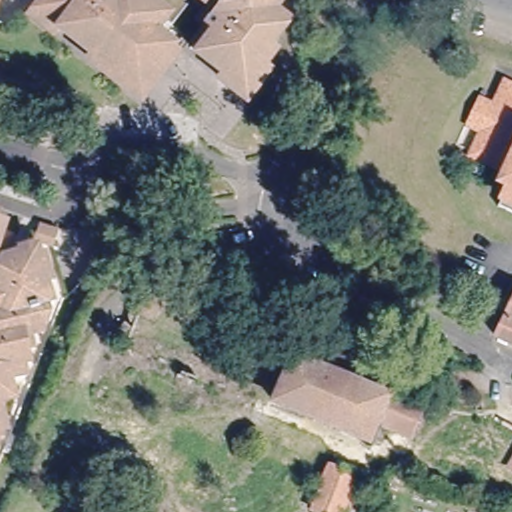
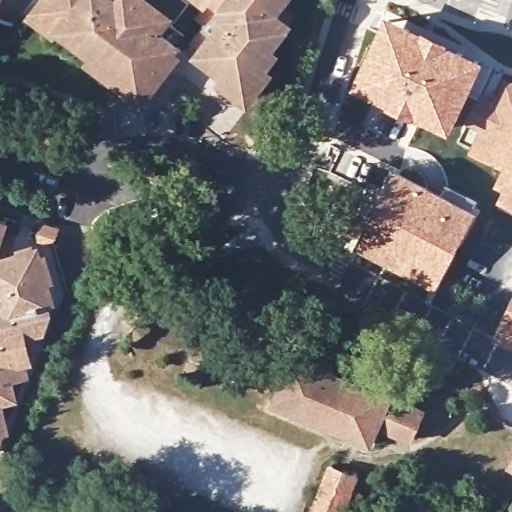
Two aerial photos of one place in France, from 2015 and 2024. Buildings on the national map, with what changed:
unchanged [(170,29),(159,21),(151,31),(168,44),(137,85),(37,10),(45,0),(177,0),(187,7),(170,29)]
unchanged [(285,13),(279,20),(282,22),(252,62),(257,67),(239,91),(190,54),(195,47),(188,42),(201,25),(192,18),(206,0),(276,0),(272,4),(285,13)]
unchanged [(137,85),(168,44),(176,51),(140,98),(32,16),(37,10),(137,85)]
new [(351,87),(385,14),(485,60),(448,134),(351,87)]
unchanged [(502,185),(495,182),(497,178),(501,180),(505,172),(471,157),(481,135),(473,131),(461,125),(471,105),(484,111),(491,114),(501,93),(512,98),(512,206),(496,198),(502,185)]
new [(355,244),(395,167),(477,209),(436,288),(355,244)]
unchanged [(11,216),(0,250),(0,212),(11,216)]
unchanged [(62,224),(56,239),(41,232),(47,218),(62,224)]
unchanged [(4,309),(0,294),(0,282),(10,279),(6,263),(10,251),(42,243),(50,267),(36,271),(44,298),(37,300),(42,319),(28,323),(36,357),(9,364),(15,388),(2,392),(12,432),(9,445),(0,447),(0,310),(4,309)]
unchanged [(512,341),(497,334),(512,303),(512,341)]
unchanged [(362,376),(380,384),(376,391),(423,412),(411,440),(379,428),(372,443),(277,402),(295,359),(358,384),(362,376)]
unchanged [(512,456),(512,475),(503,470),(512,456)]
unchanged [(327,468),(353,477),(348,491),(358,495),(351,512),(343,512),(341,511),(340,512),(312,512),(310,511),(327,468)]

